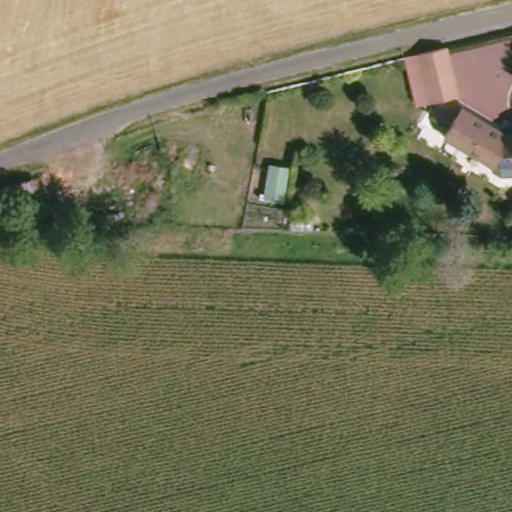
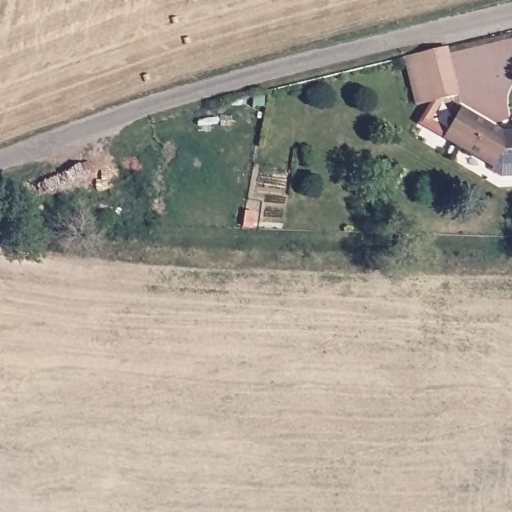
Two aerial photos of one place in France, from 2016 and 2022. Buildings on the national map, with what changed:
unchanged [(441,42),(453,90),(412,100),(400,51),(441,42)]
unchanged [(492,161),(493,159),(470,146),(472,142),(445,126),(461,99),(507,125),(512,122),(512,167),(502,167),(492,161)]

